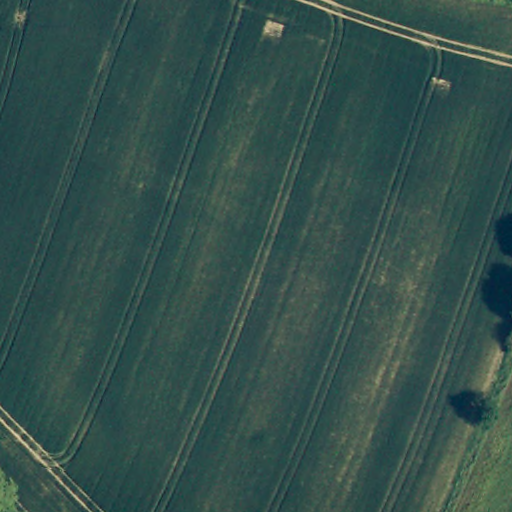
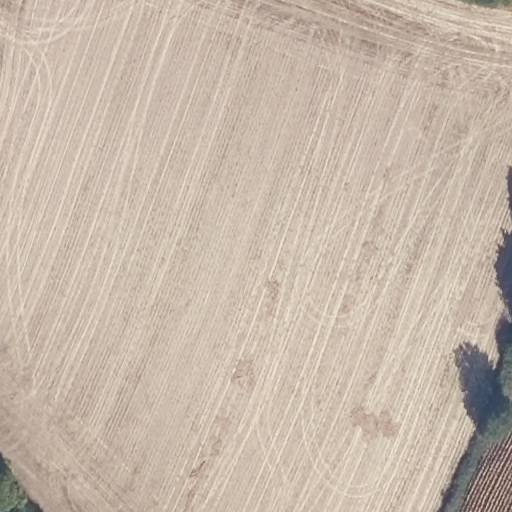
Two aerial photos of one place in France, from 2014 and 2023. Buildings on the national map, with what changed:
[]

